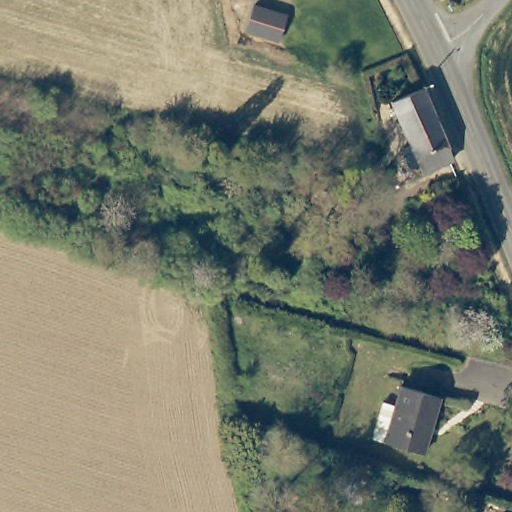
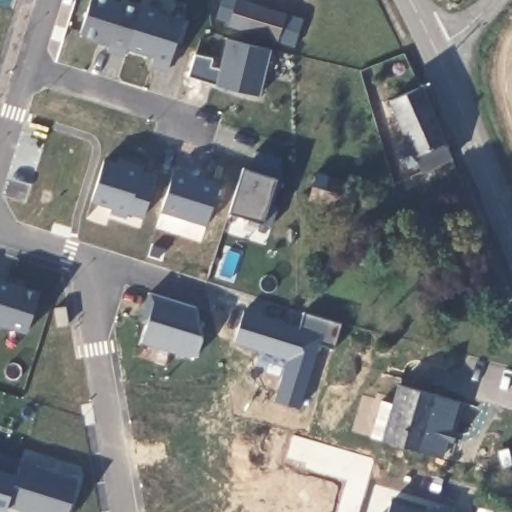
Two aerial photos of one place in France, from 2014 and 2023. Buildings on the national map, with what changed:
new [(167,74),(147,67),(151,58),(126,50),(124,57),(105,52),(106,47),(94,44),(96,40),(79,35),(91,0),(109,0),(137,9),(139,5),(183,20),(167,74)]
new [(277,42),(226,26),(228,22),(213,19),(220,0),(234,0),(286,16),(277,42)]
new [(212,56),(210,65),(219,68),(225,40),(266,49),(256,94),(215,85),(187,75),(194,51),(212,56)]
unchanged [(418,160),(410,164),(403,146),(411,143),(392,96),(421,84),(451,155),(421,168),(418,160)]
new [(277,179),(270,203),(277,206),(271,227),(262,222),(230,212),(242,169),(250,171),(255,151),(281,160),(277,179)]
new [(140,172),(155,176),(143,219),(126,215),(125,219),(107,213),(109,208),(90,202),(102,159),(115,162),(117,157),(142,165),(140,172)]
new [(191,168),(190,171),(219,180),(207,220),(161,206),(175,164),(191,168)]
new [(27,333),(0,325),(0,279),(39,290),(27,333)]
new [(198,355),(185,358),(139,343),(146,325),(139,322),(148,293),(196,307),(198,355)]
new [(338,321),(331,348),(316,345),(298,409),(273,401),(285,360),(230,345),(240,311),(295,327),(300,311),(338,321)]
unchanged [(387,442),(402,386),(442,398),(427,454),(387,442)]
new [(21,512),(7,507),(6,512),(0,512),(0,471),(15,476),(20,461),(78,480),(68,512),(21,512)]
unchanged [(503,512),(499,512),(499,511),(503,512)]

